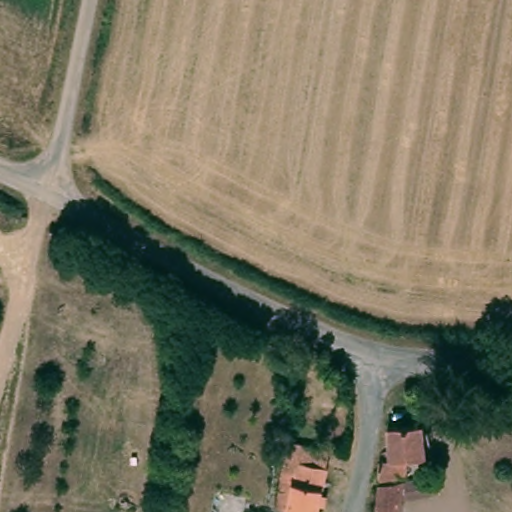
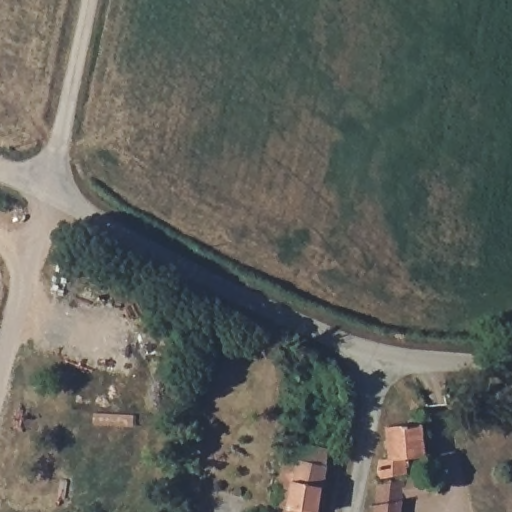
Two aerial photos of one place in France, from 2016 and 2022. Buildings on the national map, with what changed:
unchanged [(425,420),(426,430),(429,453),(405,455),(405,469),(378,473),(380,455),(390,454),(388,424),(425,420)]
unchanged [(283,468),(285,457),(287,442),(329,449),(327,464),(318,512),(287,512),(290,497),(278,495),(283,468)]
unchanged [(422,474),(436,472),(437,489),(403,493),(401,512),(375,512),(377,480),(422,474)]

